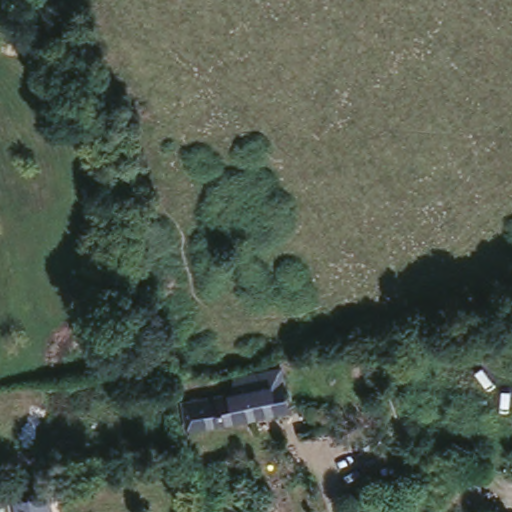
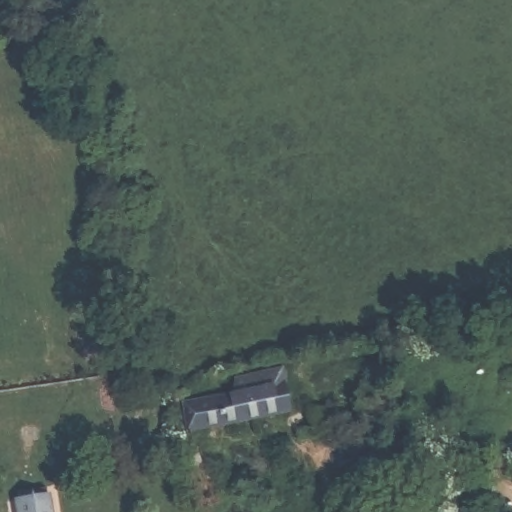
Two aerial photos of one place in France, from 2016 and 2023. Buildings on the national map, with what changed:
unchanged [(181,403),(237,393),(237,382),(288,372),(294,410),(185,428),(181,403)]
unchanged [(453,512),(449,482),(480,477),(485,512),(453,512)]
unchanged [(50,493),(52,506),(53,512),(20,512),(19,511),(18,499),(50,493)]

